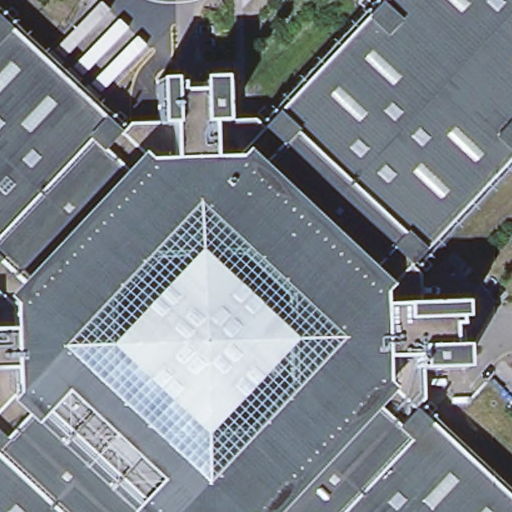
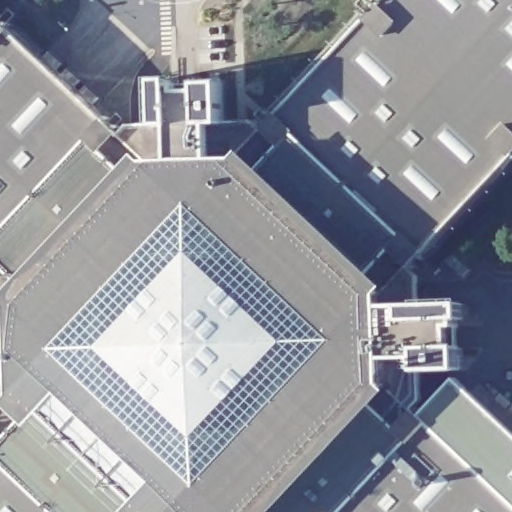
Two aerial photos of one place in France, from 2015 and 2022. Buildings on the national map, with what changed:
unchanged [(131,127),(157,127),(224,125),(253,124),(261,131),(384,0),(512,0),(512,159),(408,270),(419,281),(420,306),(422,372),(423,403),(415,411),(510,498),(497,512),(35,512),(0,479),(0,26),(121,139),(131,127)]
unchanged [(169,83),(174,90),(204,89),(209,80),(222,80),(224,125),(157,127),(156,84),(169,83)]
unchanged [(463,306),(463,320),(457,322),(458,354),(463,358),(463,371),(422,372),(420,306),(463,306)]
new [(510,498),(415,411),(423,403),(422,372),(447,372),(512,437),(512,500),(510,498)]
unchanged [(35,512),(0,512),(0,479),(35,512)]
unchanged [(512,500),(512,512),(497,512),(510,498),(512,500)]

